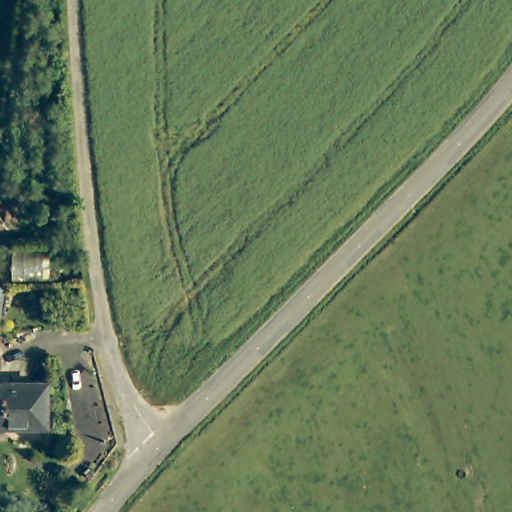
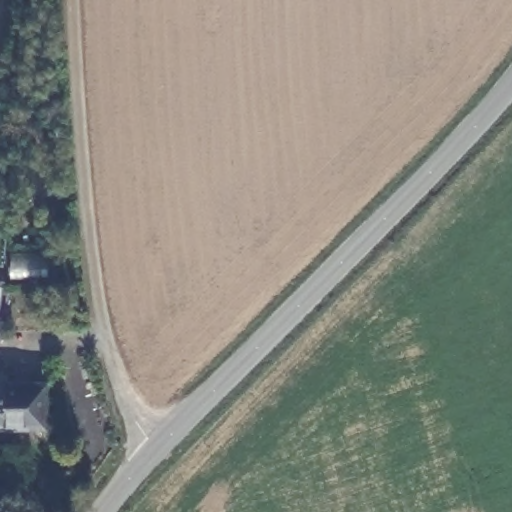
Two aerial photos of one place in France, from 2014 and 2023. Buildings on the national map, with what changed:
unchanged [(1,289),(0,299),(0,289),(1,289)]
unchanged [(45,424),(0,424),(0,383),(46,383),(45,424)]

